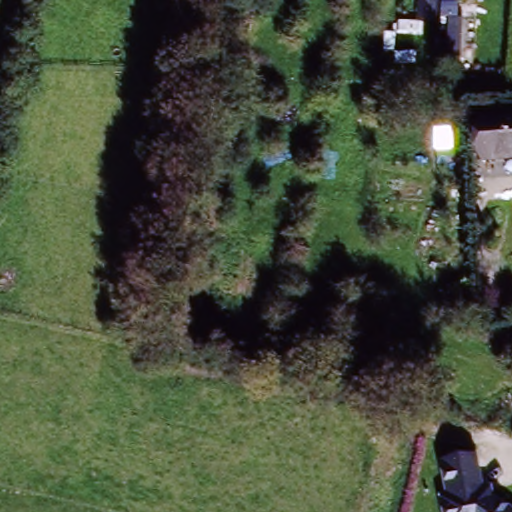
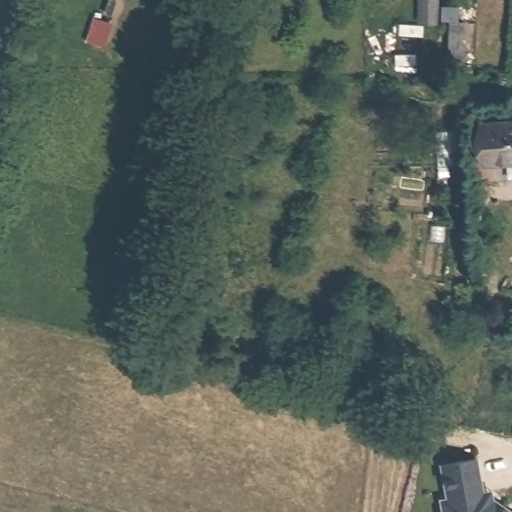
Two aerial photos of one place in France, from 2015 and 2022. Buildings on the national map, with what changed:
unchanged [(467,59),(441,59),(442,2),(467,4),(467,59)]
unchanged [(479,124),(512,120),(512,160),(484,164),(479,124)]
unchanged [(463,499),(446,471),(477,453),(496,484),(501,484),(512,492),(512,512),(463,512),(457,503),(463,499)]

